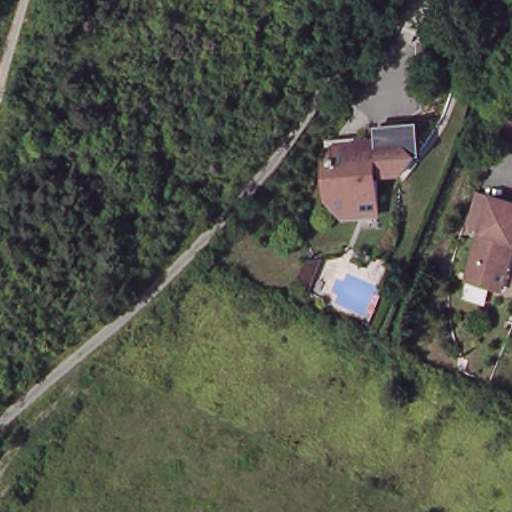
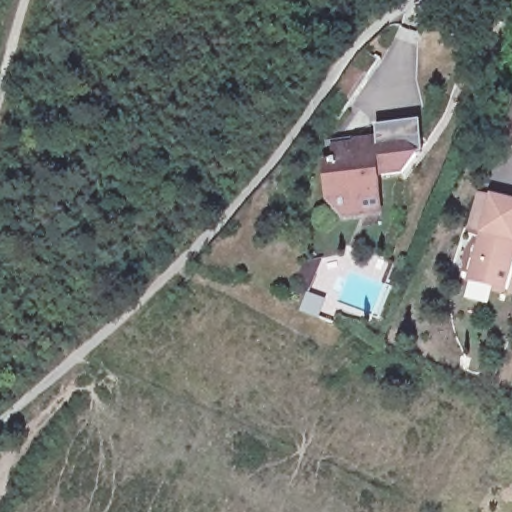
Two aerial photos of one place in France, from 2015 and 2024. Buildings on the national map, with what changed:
unchanged [(496,147),(512,108),(512,152),(496,147)]
unchanged [(379,175),(380,193),(361,195),(363,214),(344,215),(329,199),(326,163),(334,162),(333,158),(336,158),(335,146),(356,145),(356,147),(373,146),(372,141),(398,140),(409,126),(431,145),(419,157),(404,174),(379,175)]
unchanged [(492,282),(466,275),(492,193),(512,199),(512,254),(509,265),(503,285),(492,282)]

